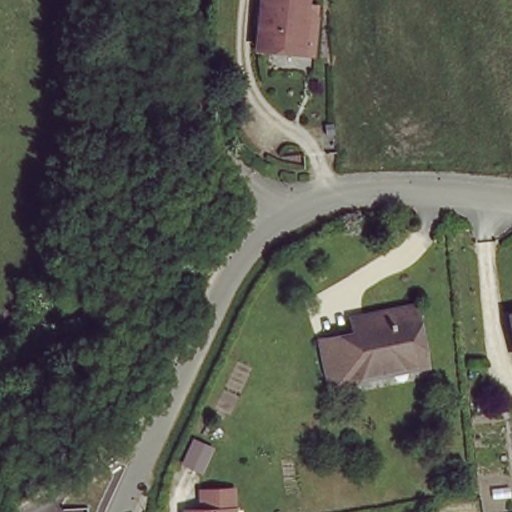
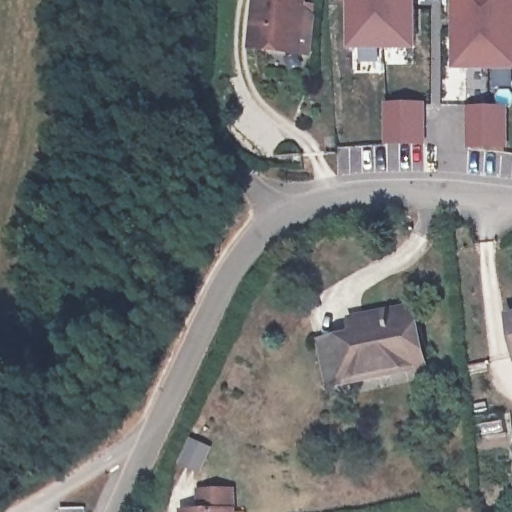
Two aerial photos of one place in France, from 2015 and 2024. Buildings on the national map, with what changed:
unchanged [(256,54),(261,0),(306,0),(300,57),(256,54)]
new [(350,0),(417,0),(416,50),(350,50),(350,0)]
new [(512,70),(455,70),(454,0),(512,0),(512,70)]
new [(386,145),(388,103),(426,104),(426,145),(386,145)]
new [(468,148),(469,107),(508,107),(508,149),(468,148)]
unchanged [(330,388),(322,345),(353,338),(350,322),(365,320),(388,315),(415,310),(417,320),(425,361),(426,369),(388,376),(330,388)]
unchanged [(512,320),(512,328),(510,320),(512,320)]
unchanged [(190,506),(200,505),(200,485),(232,485),(233,505),(229,505),(229,512),(191,512),(190,506)]

